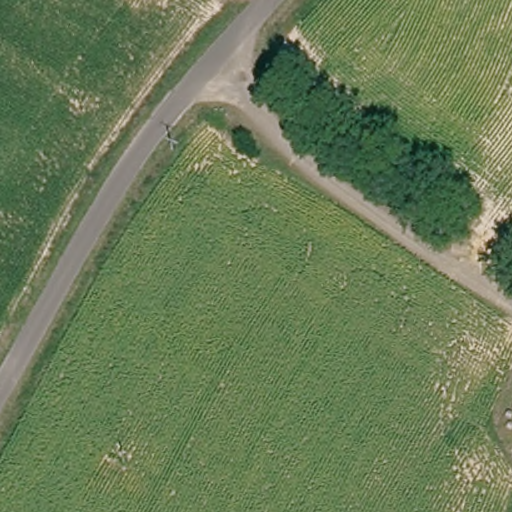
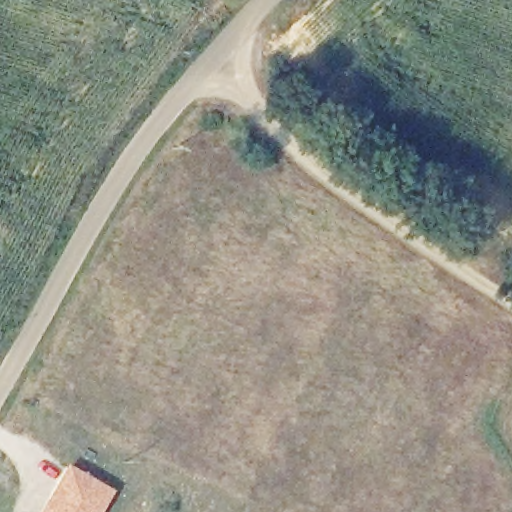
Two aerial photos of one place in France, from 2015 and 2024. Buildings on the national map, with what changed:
new [(67,463),(114,490),(101,512),(40,512),(67,463)]

